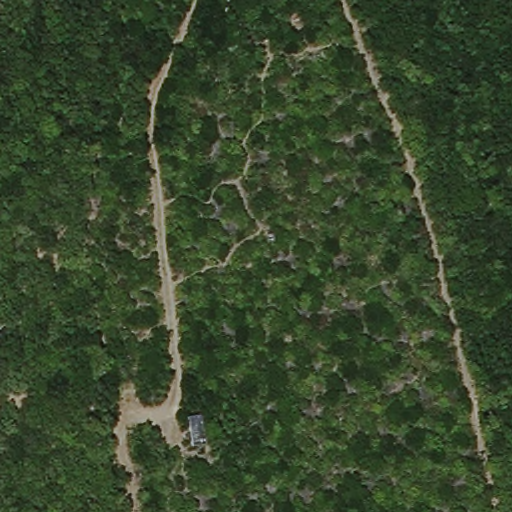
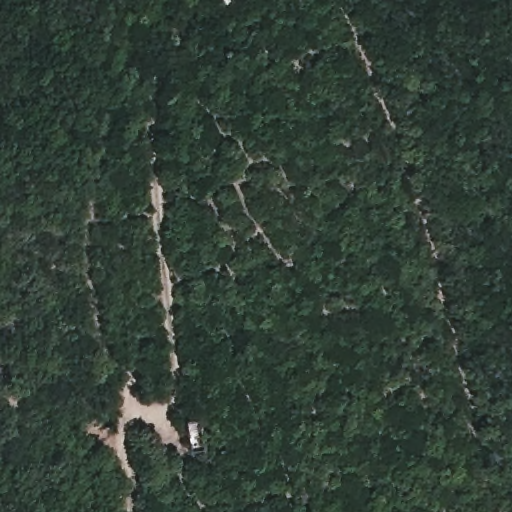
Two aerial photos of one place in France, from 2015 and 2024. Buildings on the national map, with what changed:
unchanged [(208,442),(195,446),(189,417),(202,415),(208,442)]

